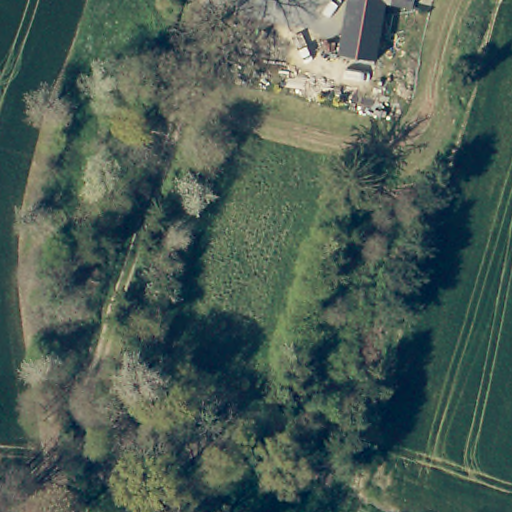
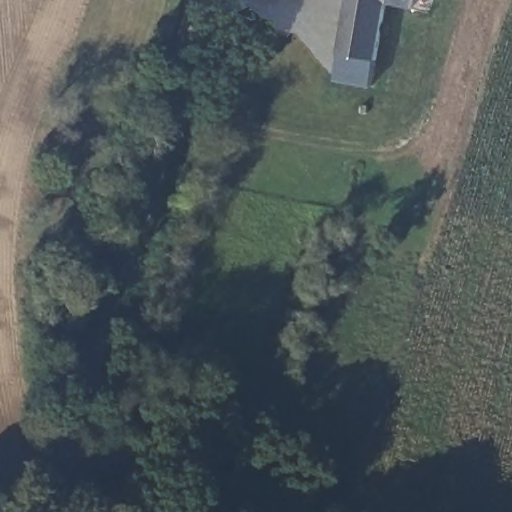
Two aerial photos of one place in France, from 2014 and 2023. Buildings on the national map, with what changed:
unchanged [(406,13),(345,0),(410,0),(406,13)]
unchanged [(377,61),(341,57),(349,1),(387,9),(377,61)]

